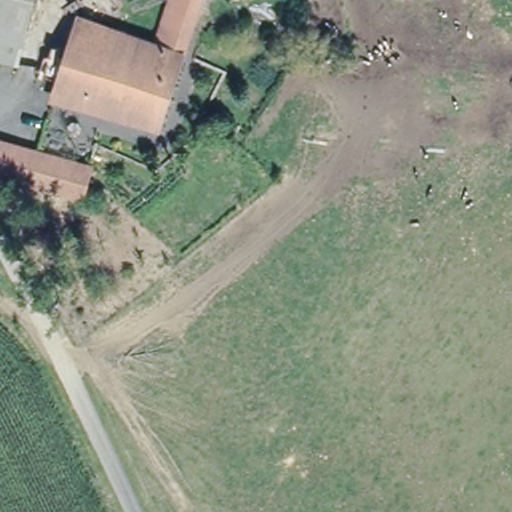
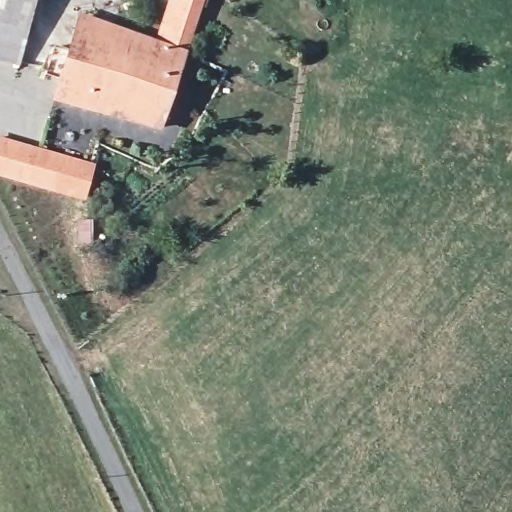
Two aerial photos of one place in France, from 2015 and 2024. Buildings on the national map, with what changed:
unchanged [(0,54),(0,0),(38,0),(24,60),(0,54)]
unchanged [(56,96),(62,78),(41,72),(55,37),(72,42),(82,16),(158,39),(173,0),(204,0),(161,127),(56,96)]
unchanged [(32,176),(0,166),(0,131),(42,145),(32,176)]
unchanged [(92,163),(82,194),(32,176),(42,145),(92,163)]

